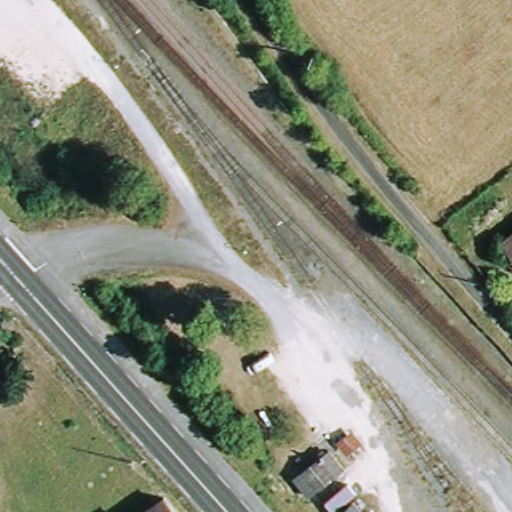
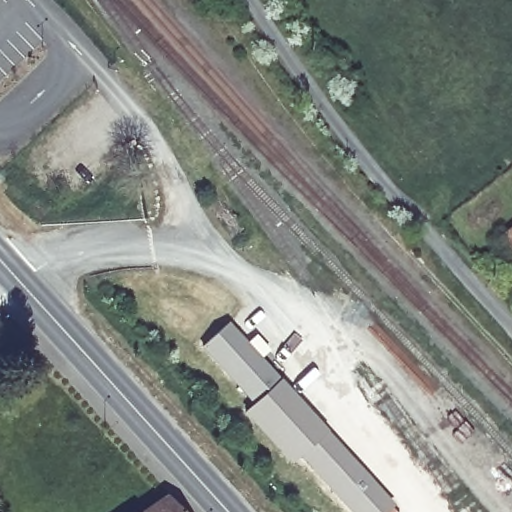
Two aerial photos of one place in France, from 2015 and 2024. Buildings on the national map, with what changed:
unchanged [(512,237),(512,265),(498,249),(512,237)]
new [(228,324),(393,506),(386,512),(351,512),(299,455),(290,463),(243,412),(253,405),(200,348),(228,324)]
unchanged [(164,497),(177,512),(144,512),(164,497)]
demolished [(354,508),(358,512),(348,512),(354,508)]

